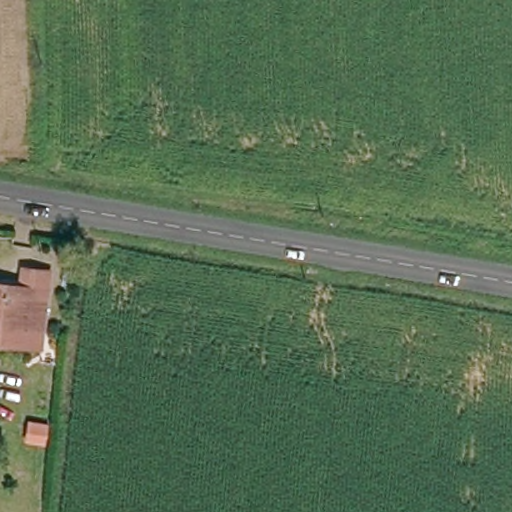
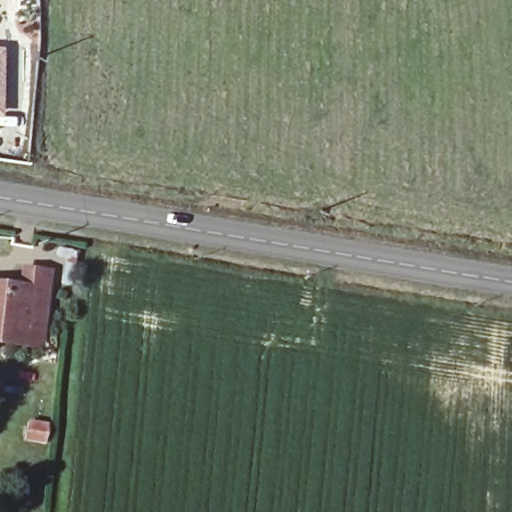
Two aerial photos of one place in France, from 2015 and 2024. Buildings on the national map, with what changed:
new [(6,116),(0,116),(0,47),(5,47),(6,116)]
unchanged [(0,281),(24,286),(27,267),(52,271),(43,328),(40,346),(0,339),(0,281)]
unchanged [(26,437),(27,428),(47,432),(45,441),(44,450),(25,447),(26,437)]

